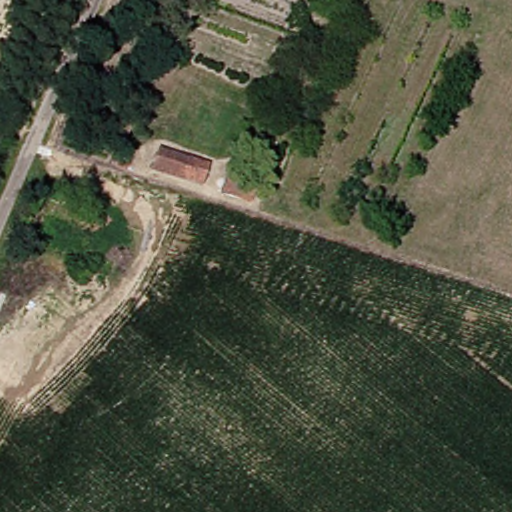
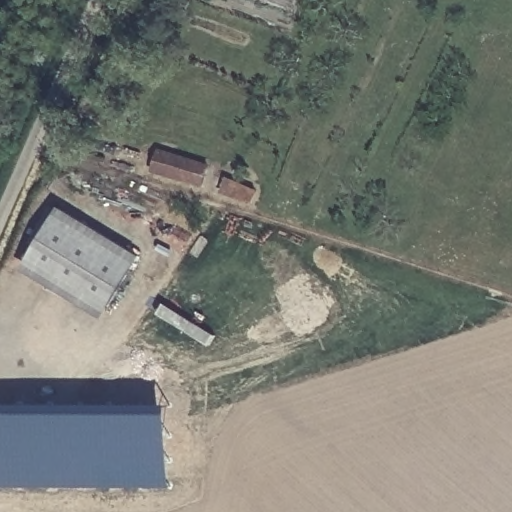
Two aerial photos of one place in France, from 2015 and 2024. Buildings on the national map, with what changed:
unchanged [(151,147),(203,164),(197,183),(144,168),(151,147)]
new [(140,256),(102,317),(22,268),(60,207),(140,256)]
new [(0,487),(0,403),(171,404),(171,486),(0,487)]

